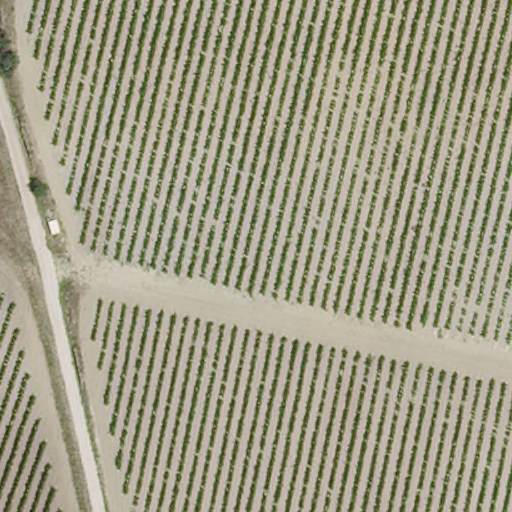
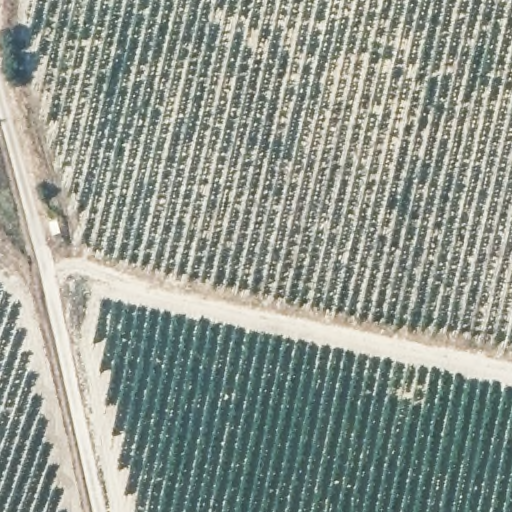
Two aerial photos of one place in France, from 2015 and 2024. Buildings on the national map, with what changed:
[]

